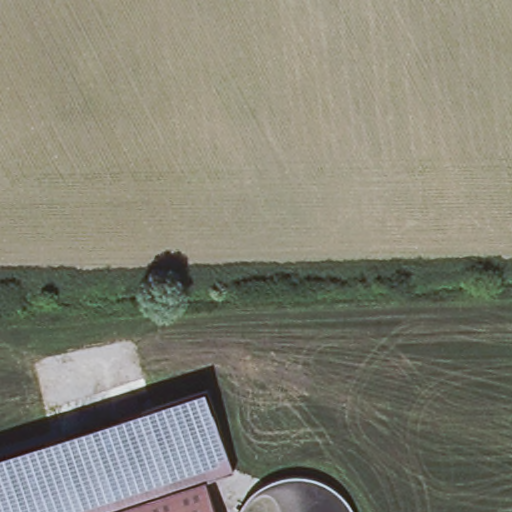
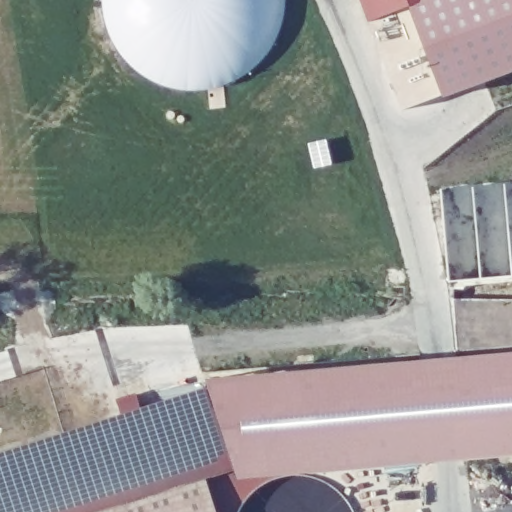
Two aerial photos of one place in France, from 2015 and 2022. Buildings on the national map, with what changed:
new [(368,21),(360,0),(422,0),(410,4),(368,21)]
new [(410,4),(422,0),(512,0),(512,70),(444,95),(410,4)]
new [(512,355),(512,458),(236,482),(234,472),(210,387),(208,380),(512,355)]
unchanged [(210,387),(234,472),(208,479),(102,512),(0,512),(0,454),(210,387)]
unchanged [(208,479),(218,512),(102,512),(208,479)]

